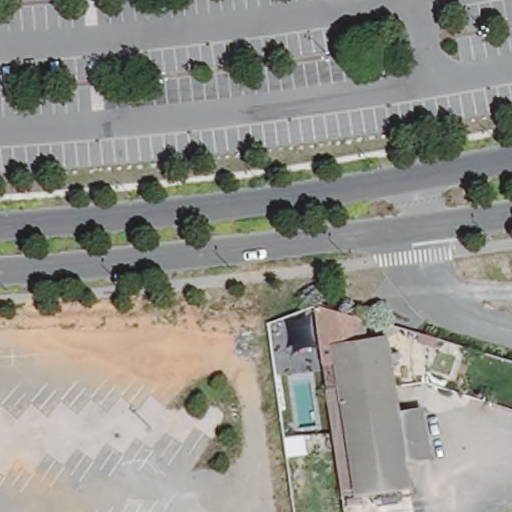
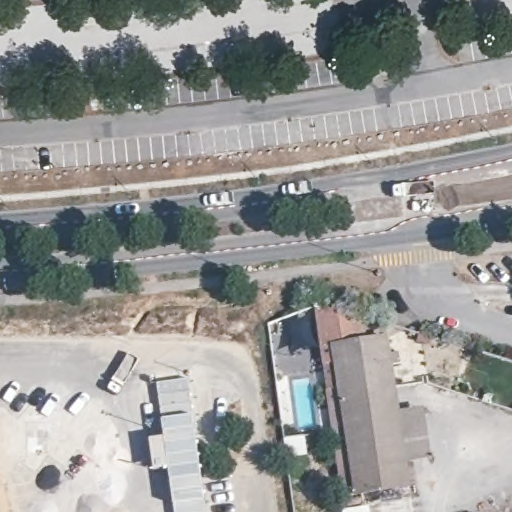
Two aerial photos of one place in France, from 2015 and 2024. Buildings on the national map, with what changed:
unchanged [(379,324),(375,346),(401,342),(412,416),(420,468),(424,490),(356,500),(329,307),(379,324)]
new [(186,377),(192,413),(160,417),(155,382),(186,377)]
unchanged [(438,412),(447,462),(420,468),(412,416),(438,412)]
new [(163,435),(160,417),(192,413),(205,489),(207,512),(174,512),(168,469),(153,471),(148,437),(163,435)]

